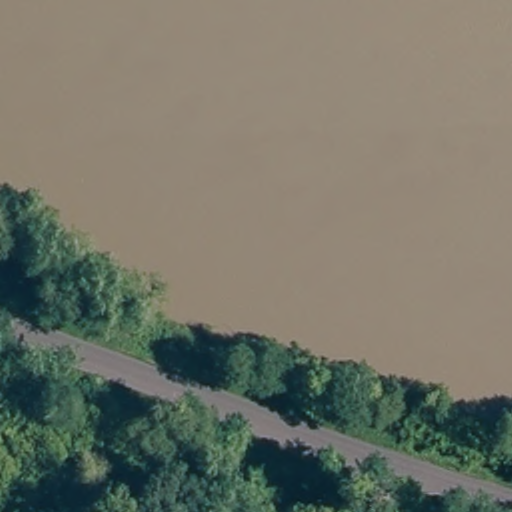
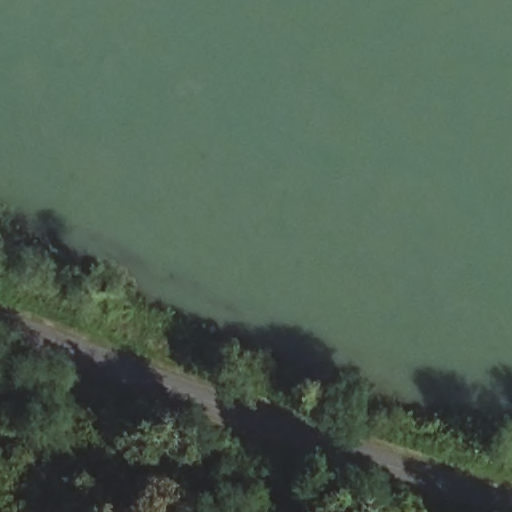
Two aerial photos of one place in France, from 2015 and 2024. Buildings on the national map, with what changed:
[]

